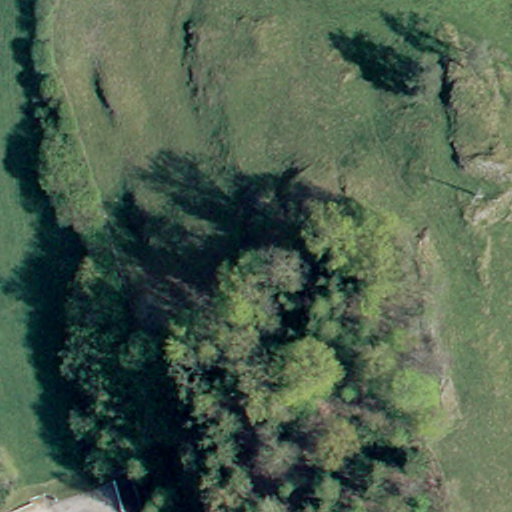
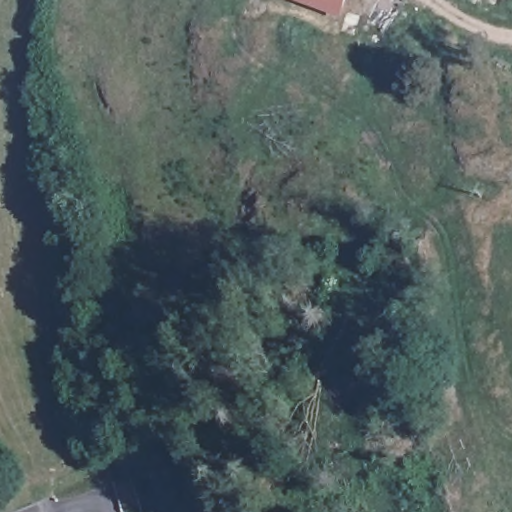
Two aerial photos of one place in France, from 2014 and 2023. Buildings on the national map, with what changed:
new [(302,0),(345,0),(341,13),(302,0)]

